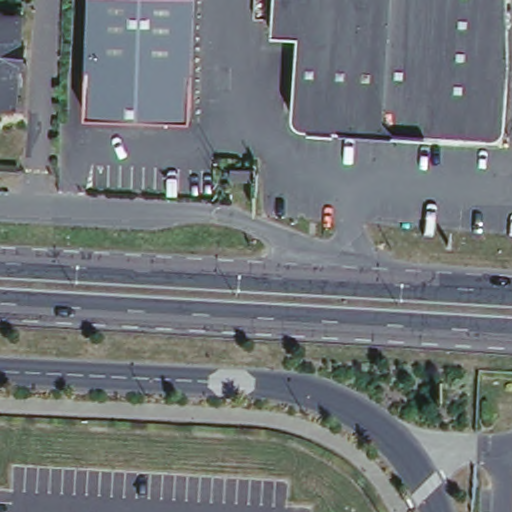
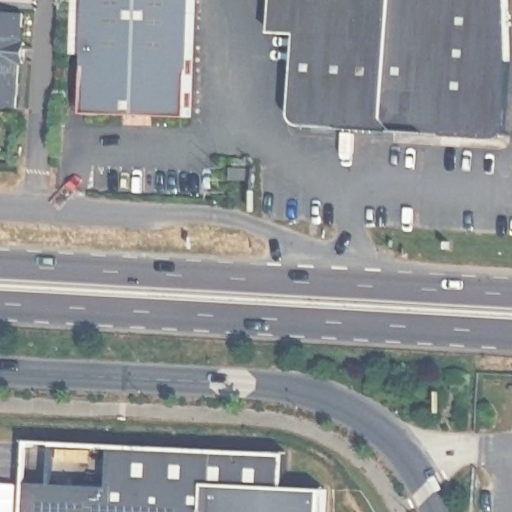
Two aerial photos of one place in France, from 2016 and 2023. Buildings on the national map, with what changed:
unchanged [(90,0),(195,0),(191,120),(86,116),(90,0)]
unchanged [(509,46),(508,120),(507,129),(504,132),(500,135),(496,135),(492,136),(393,131),(388,130),(386,127),(385,125),(384,120),(358,119),(357,122),(356,125),(353,127),(350,129),(346,130),(303,127),(299,126),(296,123),(295,120),(294,117),(296,40),(271,39),(273,0),(508,0),(509,46)]
unchanged [(31,38),(29,61),(25,61),(23,107),(0,106),(0,12),(27,14),(26,38),(31,38)]
unchanged [(217,174),(239,175),(239,186),(216,185),(217,174)]
new [(294,498),(341,500),(340,512),(39,512),(41,453),(296,465),(294,498)]

